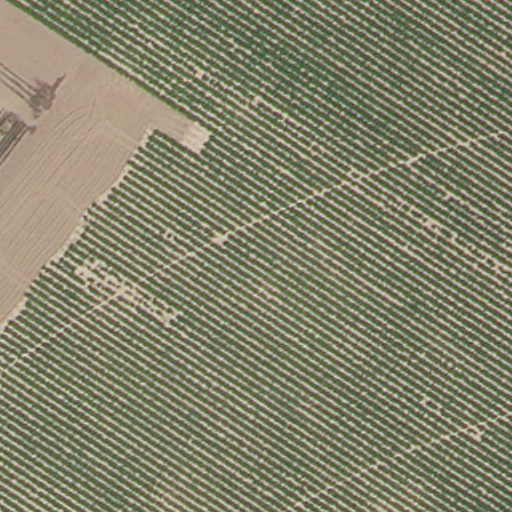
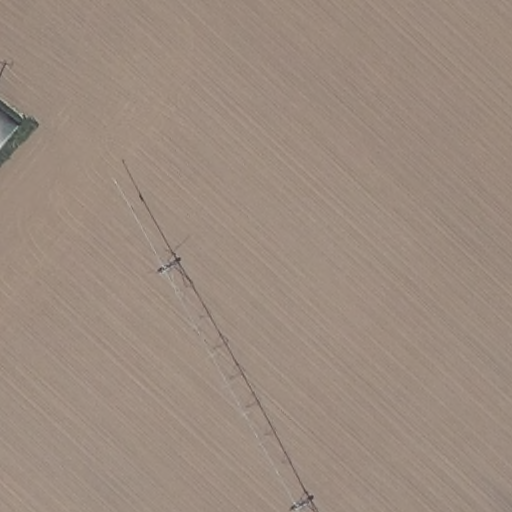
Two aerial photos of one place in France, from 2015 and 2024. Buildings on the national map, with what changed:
new [(19,127),(0,149),(0,112),(19,127)]

